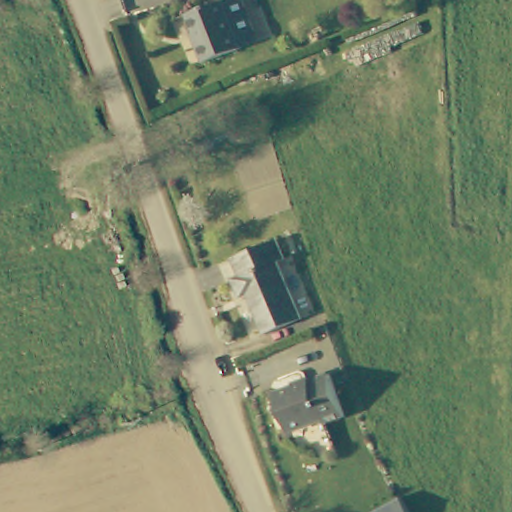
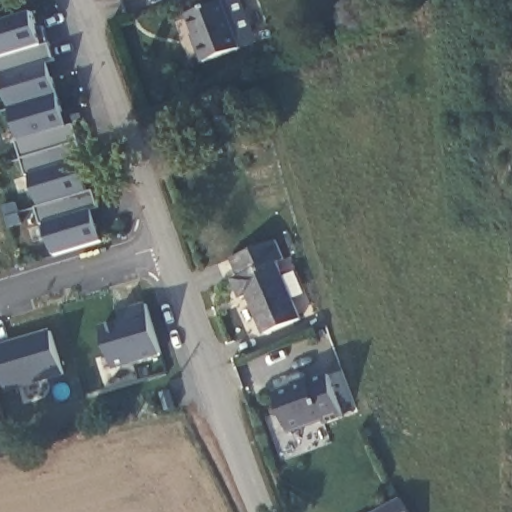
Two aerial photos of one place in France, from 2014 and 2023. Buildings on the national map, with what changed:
unchanged [(245,48),(208,63),(200,45),(203,44),(191,16),(231,0),(244,0),(256,30),(261,42),(245,48)]
new [(38,28),(45,27),(55,61),(43,64),(48,79),(53,78),(63,112),(58,113),(62,128),(74,125),(84,159),(72,162),(76,177),(81,175),(86,193),(93,191),(98,208),(86,211),(91,226),(96,225),(101,242),(53,255),(44,223),(40,224),(35,207),(39,206),(29,174),(26,175),(16,141),(19,140),(1,76),(0,77),(0,22),(34,12),(38,28)]
unchanged [(245,294),(238,296),(231,279),(239,276),(233,255),(276,240),(282,259),(275,264),(296,316),(257,332),(245,294)]
new [(117,313),(129,309),(145,303),(161,353),(114,368),(101,328),(120,322),(117,313)]
new [(61,373),(3,390),(0,380),(0,345),(49,331),(61,373)]
unchanged [(281,398),(334,375),(354,415),(334,423),(333,419),(297,433),(281,398)]
unchanged [(411,512),(374,512),(403,496),(411,512)]

